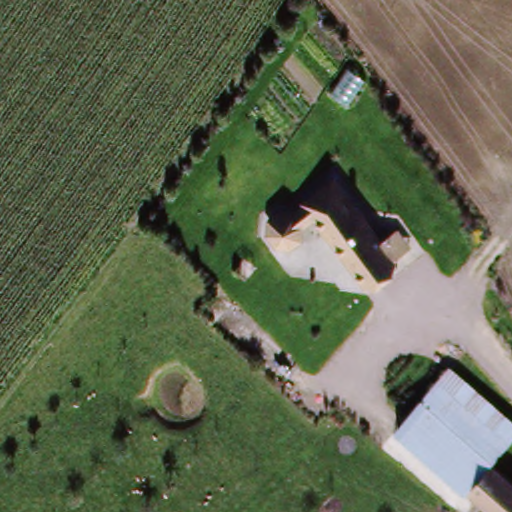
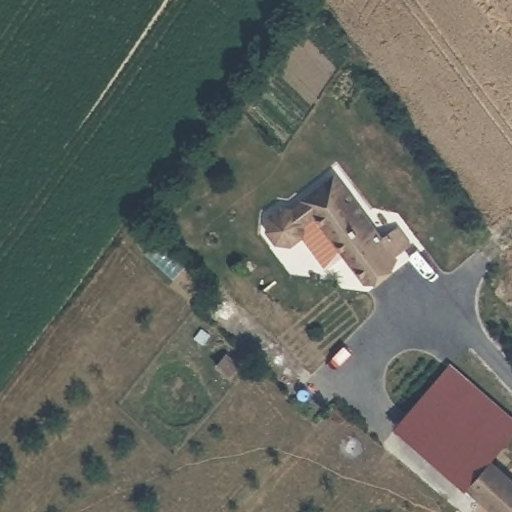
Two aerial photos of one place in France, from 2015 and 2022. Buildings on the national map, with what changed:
unchanged [(364,273),(312,209),(340,185),(394,250),(364,273)]
unchanged [(475,458),(412,404),(450,359),(512,414),(512,443),(489,470),(465,498),(452,487),(475,458)]
unchanged [(403,396),(412,404),(475,458),(452,487),(379,425),(403,396)]
unchanged [(489,470),(512,491),(512,512),(480,512),(465,498),(489,470)]

